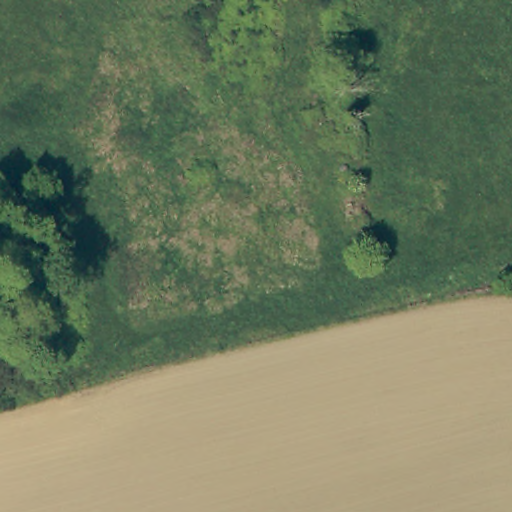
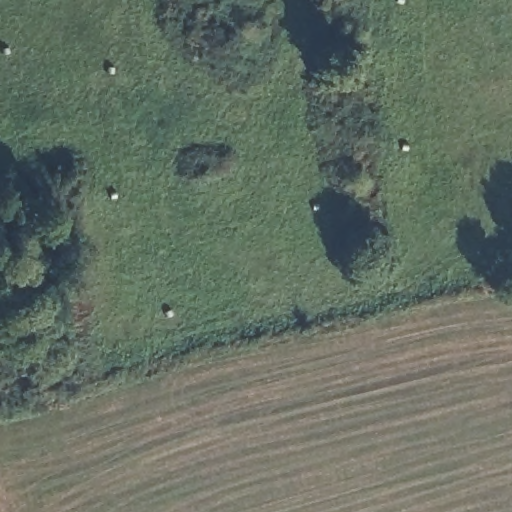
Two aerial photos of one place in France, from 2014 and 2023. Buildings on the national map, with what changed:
[]

